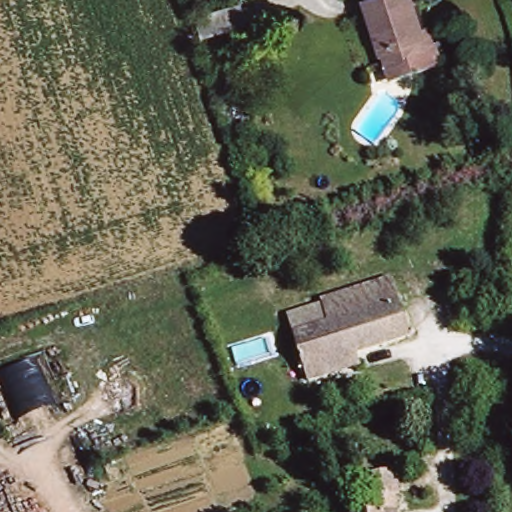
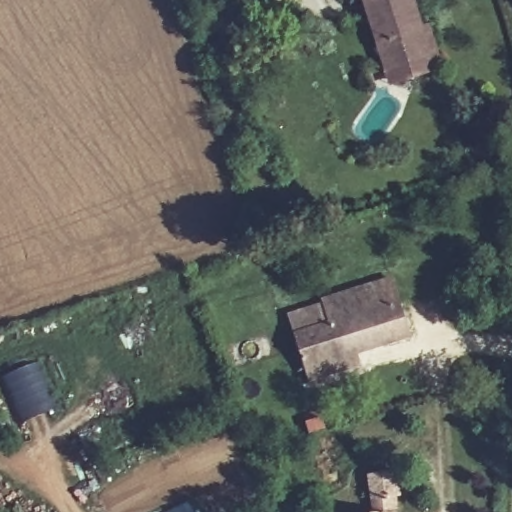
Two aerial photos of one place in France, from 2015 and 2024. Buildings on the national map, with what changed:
unchanged [(363,0),(411,0),(417,21),(424,46),(381,60),(363,0)]
unchanged [(198,22),(238,10),(244,27),(203,39),(198,22)]
unchanged [(417,21),(424,18),(436,62),(386,78),(381,60),(424,46),(417,21)]
unchanged [(353,310),(346,288),(386,273),(395,297),(353,310)]
unchanged [(332,365),(308,373),(295,328),(353,310),(395,297),(398,295),(408,327),(339,350),(342,361),(332,365)]
unchanged [(390,471),(391,496),(379,496),(379,510),(391,511),(392,512),(371,512),(370,470),(390,471)]
unchanged [(371,512),(349,512),(349,511),(371,512)]

